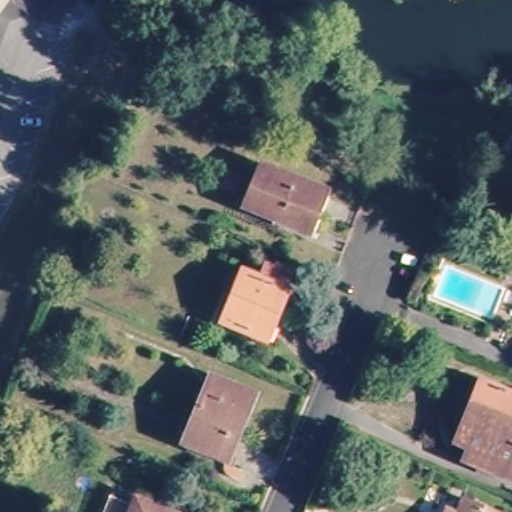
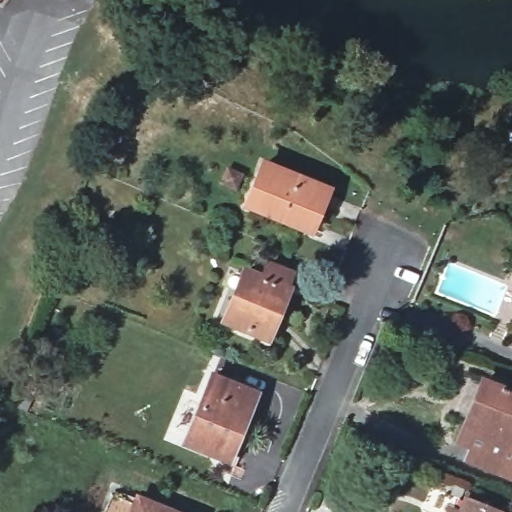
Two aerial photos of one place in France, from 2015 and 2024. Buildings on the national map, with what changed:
unchanged [(264,169),(327,194),(310,236),(247,207),(264,169)]
unchanged [(236,191),(222,185),(228,171),(242,177),(236,191)]
unchanged [(250,276),(259,280),(266,265),(293,276),(286,292),(290,294),(268,344),(230,327),(250,276)]
unchanged [(254,398),(226,460),(187,442),(214,380),(254,398)]
unchanged [(469,468),(474,452),(459,446),(479,392),(512,404),(512,484),(469,468)]
unchanged [(102,512),(109,495),(136,506),(139,500),(166,512),(102,512)]
unchanged [(474,512),(449,512),(453,503),(474,512)]

